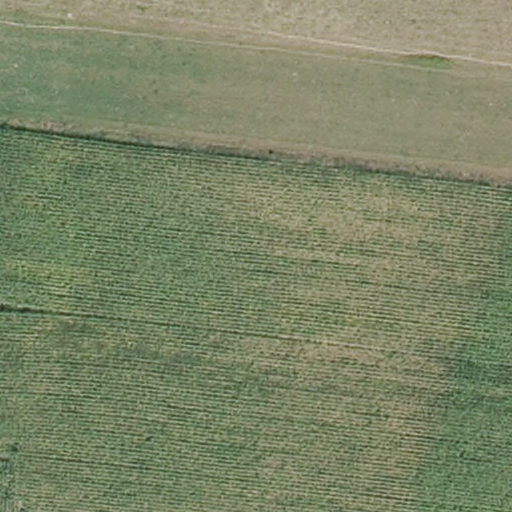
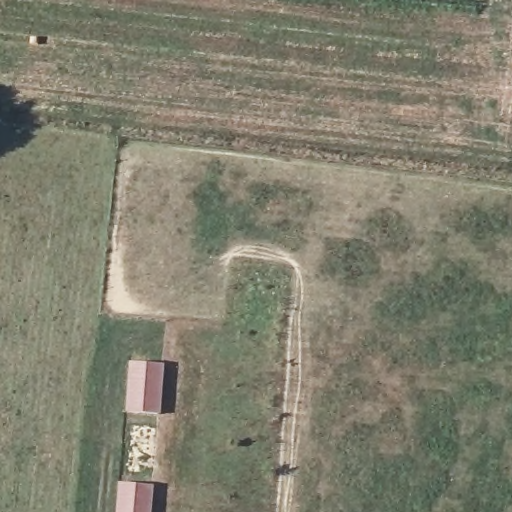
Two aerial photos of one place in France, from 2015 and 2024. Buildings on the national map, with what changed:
new [(130,363),(166,366),(161,414),(126,412),(130,363)]
new [(119,482),(156,486),(153,512),(117,512),(119,482)]

